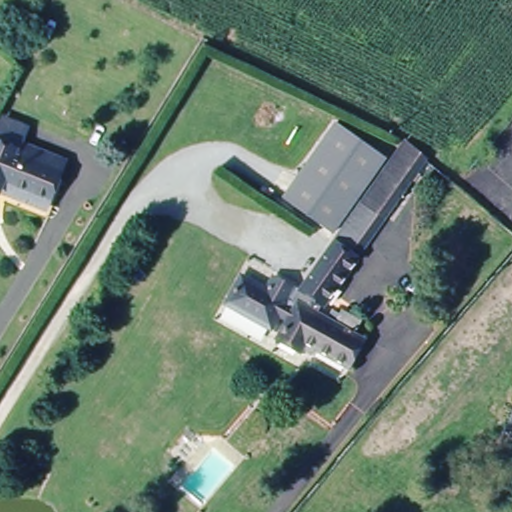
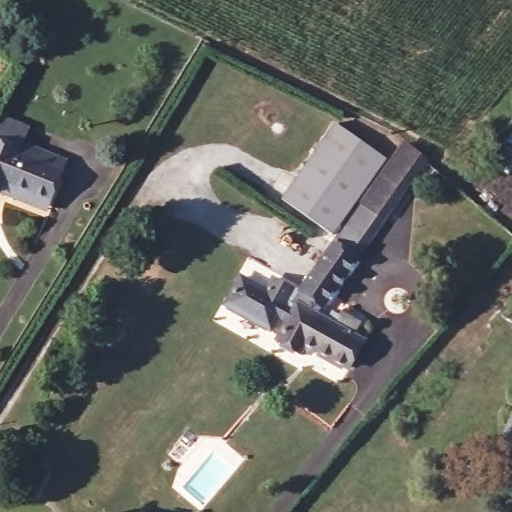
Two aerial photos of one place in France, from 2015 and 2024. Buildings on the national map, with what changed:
unchanged [(4,190),(0,189),(0,133),(7,114),(29,121),(22,139),(69,158),(54,195),(49,208),(4,190)]
unchanged [(280,198),(335,121),(390,161),(336,240),(280,198)]
unchanged [(433,162),(322,312),(335,319),(341,308),(365,318),(356,334),(368,340),(355,372),(301,349),(295,358),(270,336),(272,333),(302,289),(336,240),(390,161),(406,138),(433,162)]
unchanged [(221,305),(240,274),(266,287),(273,273),(302,289),(272,333),(221,305)]
unchanged [(512,425),(512,431),(510,429),(512,425)]
unchanged [(196,443),(181,461),(167,449),(181,430),(196,443)]

